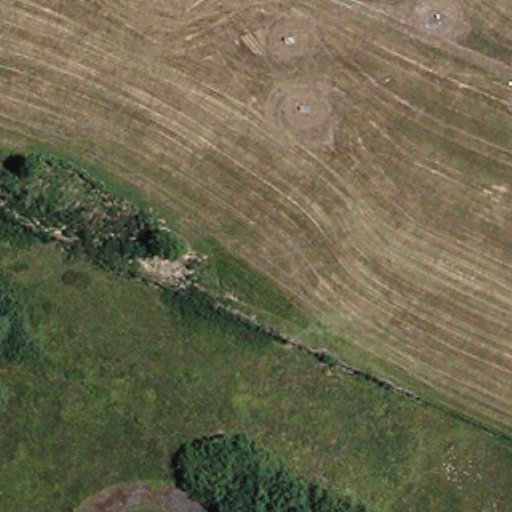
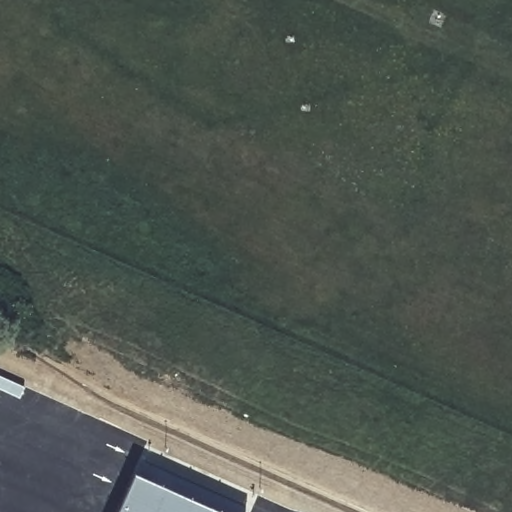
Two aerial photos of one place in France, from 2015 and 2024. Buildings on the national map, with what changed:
new [(133,474),(220,512),(117,512),(133,474)]

